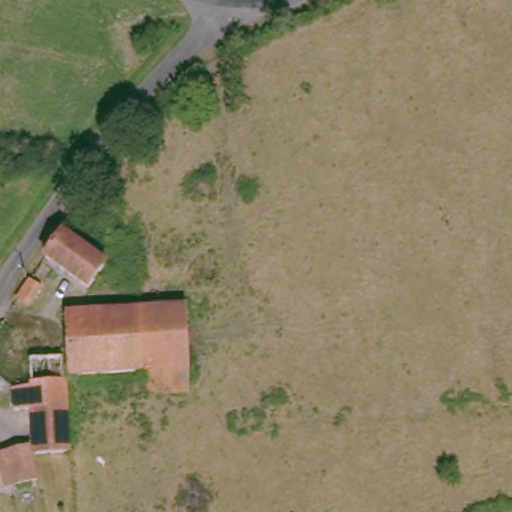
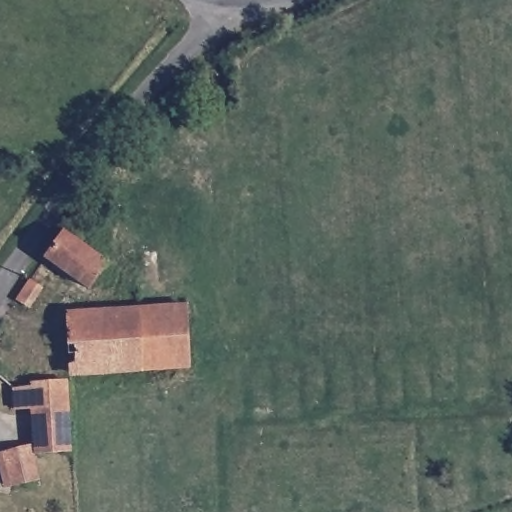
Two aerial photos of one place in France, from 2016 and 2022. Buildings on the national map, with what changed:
unchanged [(107,261),(88,286),(47,257),(66,230),(107,261)]
unchanged [(32,277),(43,285),(26,307),(17,301),(32,277)]
unchanged [(144,305),(189,303),(191,367),(147,368),(144,305)]
unchanged [(37,413),(16,413),(15,413),(14,383),(36,383),(36,382),(36,367),(36,353),(68,352),(67,307),(144,305),(147,368),(144,368),(68,370),(68,382),(72,452),(39,452),(37,413)]
unchanged [(147,368),(191,367),(192,393),(147,394),(147,368)]
unchanged [(17,485),(14,468),(1,470),(1,465),(0,456),(13,454),(36,448),(37,452),(43,481),(17,485)]

